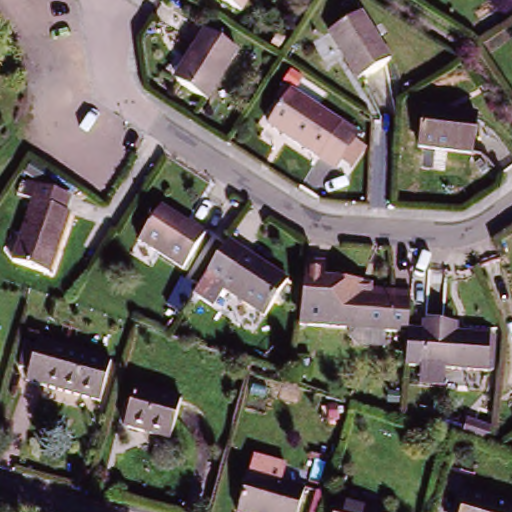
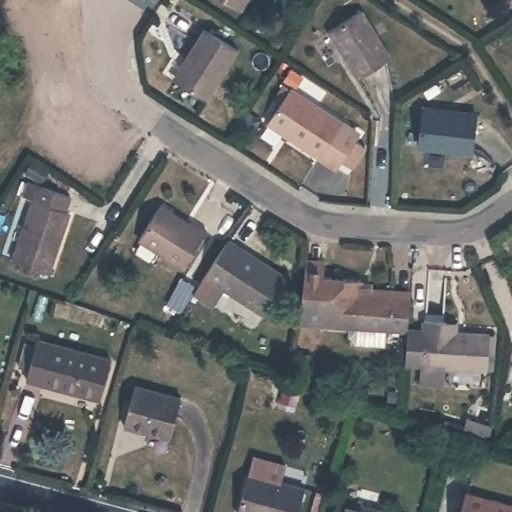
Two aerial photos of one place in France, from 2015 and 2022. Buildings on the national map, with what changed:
unchanged [(205,0),(252,0),(236,24),(203,2),(205,0)]
unchanged [(358,15),(389,62),(358,83),(326,36),(358,15)]
unchanged [(191,64),(208,34),(241,54),(211,105),(182,87),(178,85),(191,64)]
unchanged [(334,167),(317,157),(266,122),(288,89),(340,123),(356,134),(334,167)]
unchanged [(472,156),(420,151),(423,112),(475,117),(472,156)]
unchanged [(64,215),(69,217),(49,277),(13,266),(33,204),(23,201),(28,188),(36,191),(68,201),(64,215)]
unchanged [(206,235),(183,272),(139,244),(161,211),(189,230),(192,226),(206,235)]
unchanged [(196,296),(206,278),(229,243),(289,281),(267,317),(224,289),(213,307),(196,296)]
unchanged [(453,321),(463,322),(462,332),(495,335),(492,370),(426,365),(409,363),(412,333),(392,332),(391,347),(363,344),(356,337),(356,330),(304,326),(311,266),(329,267),(329,279),(366,282),(366,289),(415,293),(414,299),(413,329),(429,330),(429,319),(453,321)]
unchanged [(111,364),(99,404),(25,382),(28,372),(19,370),(25,347),(35,349),(37,342),(111,364)]
unchanged [(181,405),(169,444),(123,431),(134,392),(181,405)]
unchanged [(456,425),(475,431),(477,424),(502,432),(502,443),(501,447),(454,432),(456,425)]
unchanged [(247,473),(302,490),(296,512),(236,512),(247,473)]
unchanged [(464,495),(512,509),(512,512),(459,512),(464,495)]
unchanged [(338,498),(385,512),(334,512),(338,498)]

